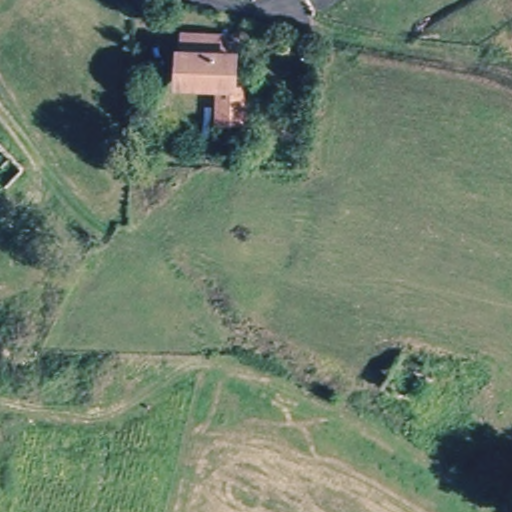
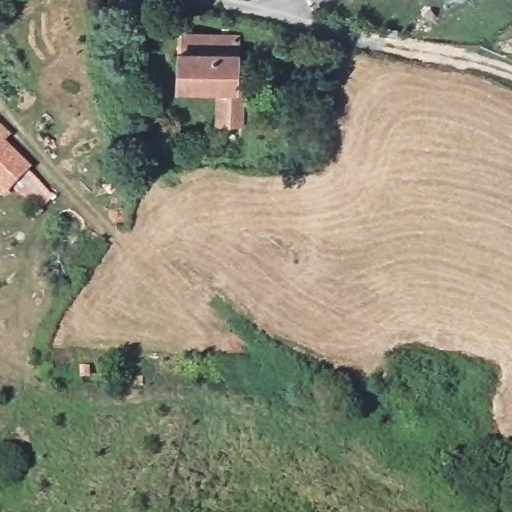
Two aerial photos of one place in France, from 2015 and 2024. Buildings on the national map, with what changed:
unchanged [(211,85),(181,85),(182,50),(193,50),(194,30),(239,31),(237,86),(211,85)]
unchanged [(243,86),(242,124),(211,122),(211,85),(237,86),(243,86)]
new [(35,212),(11,190),(2,199),(0,198),(0,126),(10,135),(5,141),(31,168),(28,171),(54,195),(35,212)]

